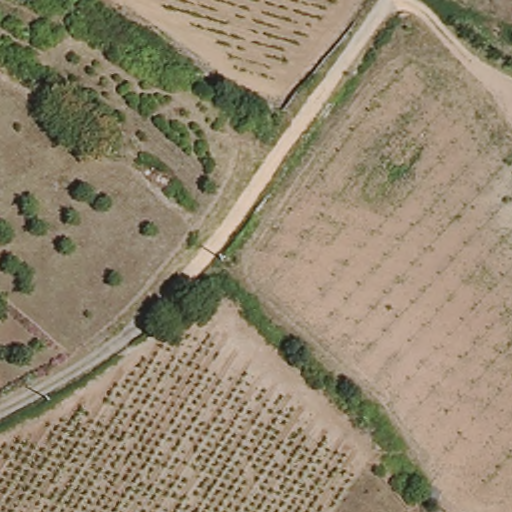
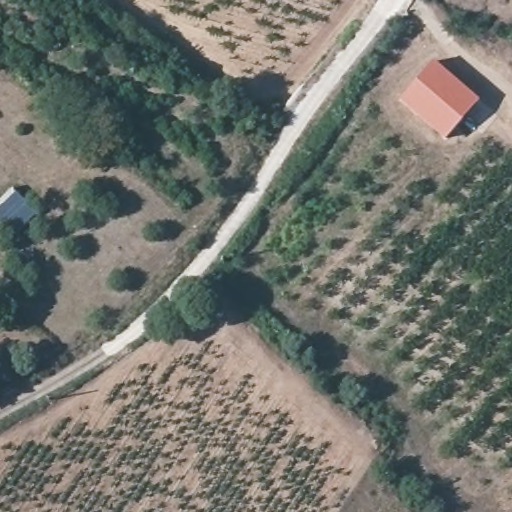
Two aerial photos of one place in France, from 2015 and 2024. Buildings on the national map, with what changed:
new [(480,99),(446,139),(399,99),(435,60),(480,99)]

